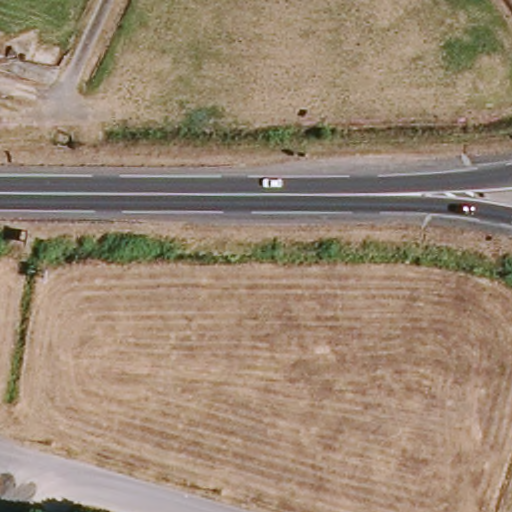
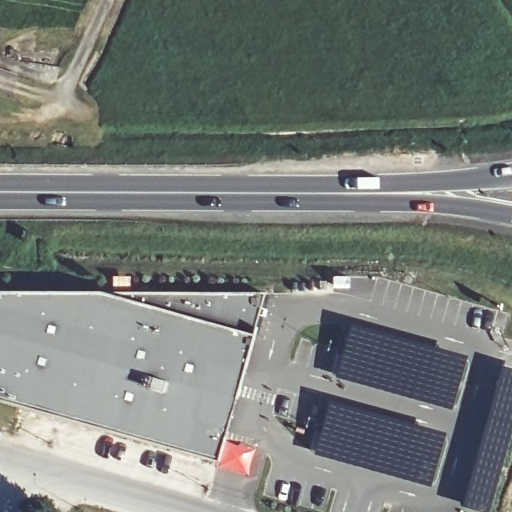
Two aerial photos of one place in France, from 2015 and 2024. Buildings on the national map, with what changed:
new [(252,336),(237,332),(211,422),(227,427),(217,460),(0,398),(0,288),(266,291),(252,336)]
new [(237,332),(252,336),(227,427),(211,422),(237,332)]

